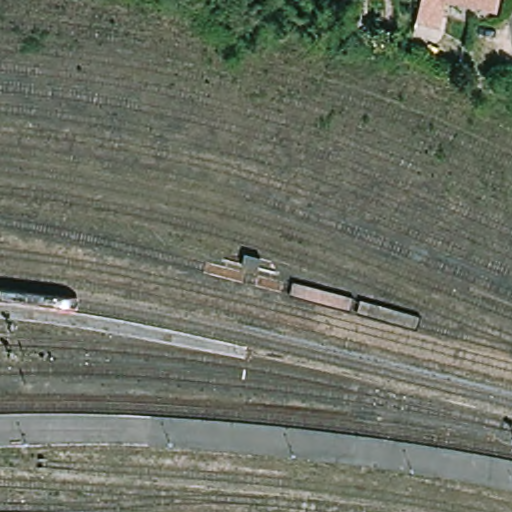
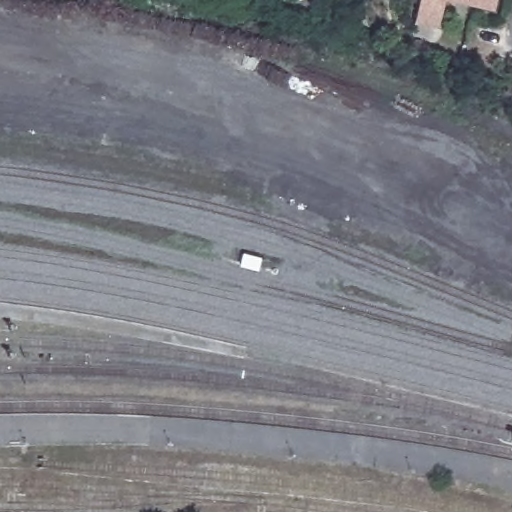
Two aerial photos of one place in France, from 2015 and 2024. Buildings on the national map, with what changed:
unchanged [(440,28),(416,23),(420,4),(421,0),(446,0),(440,28)]
unchanged [(458,0),(494,0),(492,8),(458,0)]

